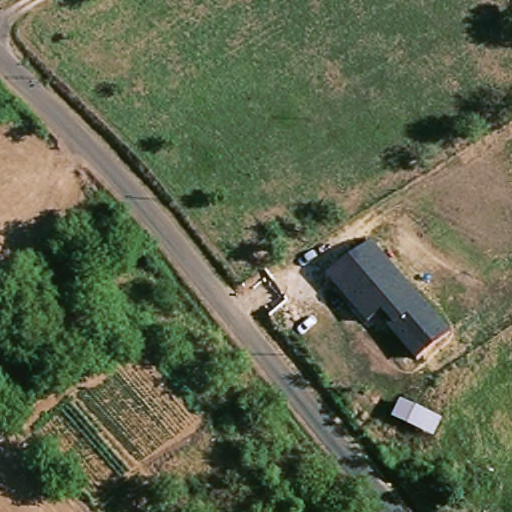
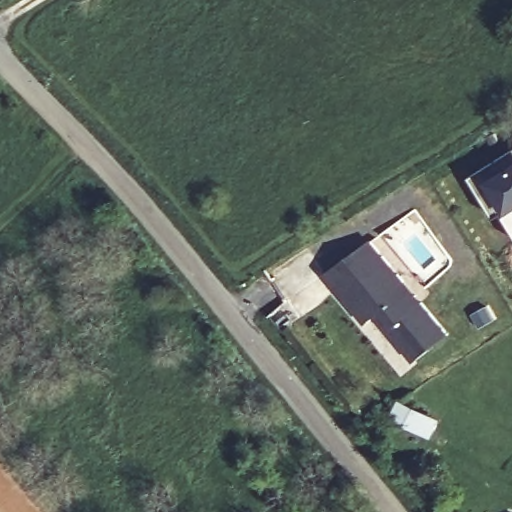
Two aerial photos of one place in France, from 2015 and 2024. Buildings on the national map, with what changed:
new [(491,160),(512,147),(512,210),(504,214),(496,220),(467,178),(491,160)]
new [(512,210),(512,226),(504,214),(512,210)]
unchanged [(451,331),(416,362),(378,318),(368,327),(326,277),(369,242),(451,331)]

